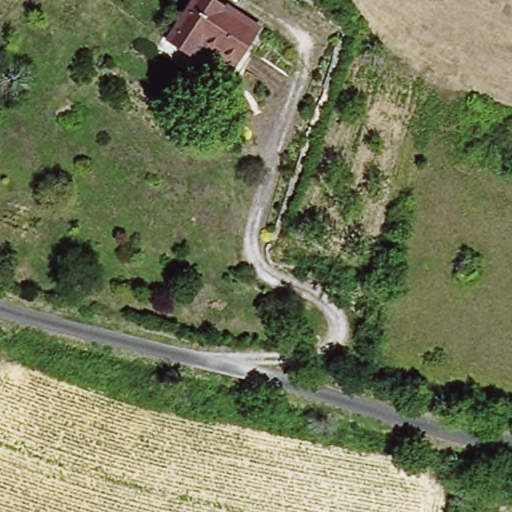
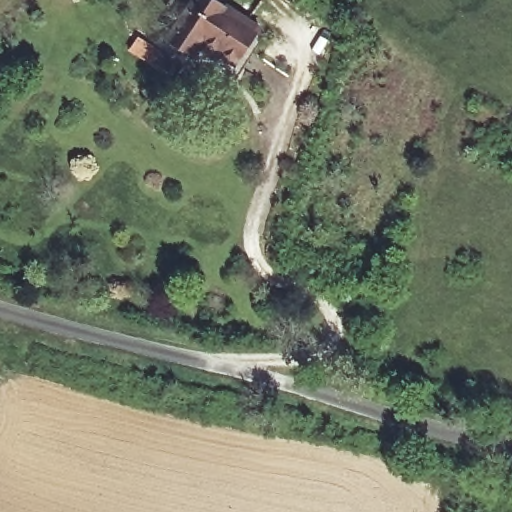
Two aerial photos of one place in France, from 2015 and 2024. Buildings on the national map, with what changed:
unchanged [(228,82),(161,38),(186,0),(219,0),(262,29),(228,82)]

